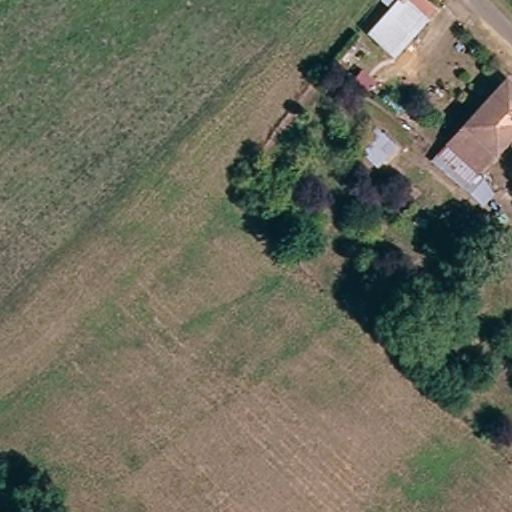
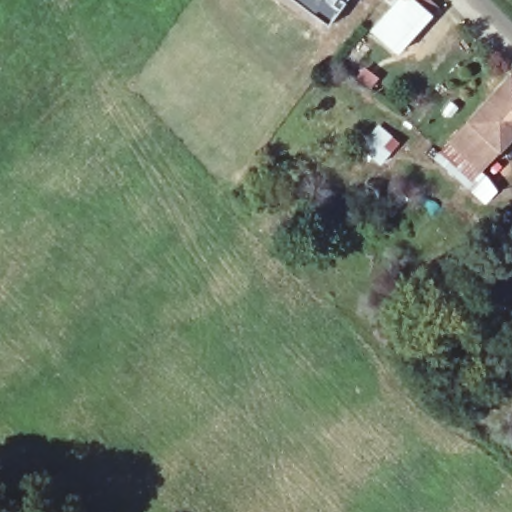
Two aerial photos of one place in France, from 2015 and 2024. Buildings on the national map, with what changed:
new [(327,27),(290,0),(347,0),(327,27)]
unchanged [(381,7),(386,0),(436,0),(440,3),(417,34),(381,7)]
unchanged [(398,59),(362,29),(381,7),(417,34),(398,59)]
unchanged [(502,82),(512,91),(512,129),(476,172),(447,147),(462,129),(502,82)]

